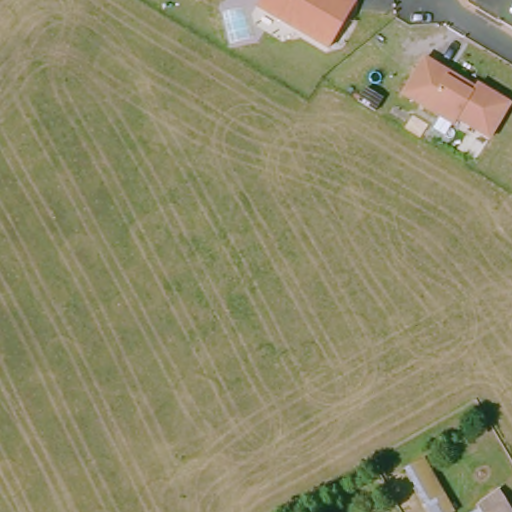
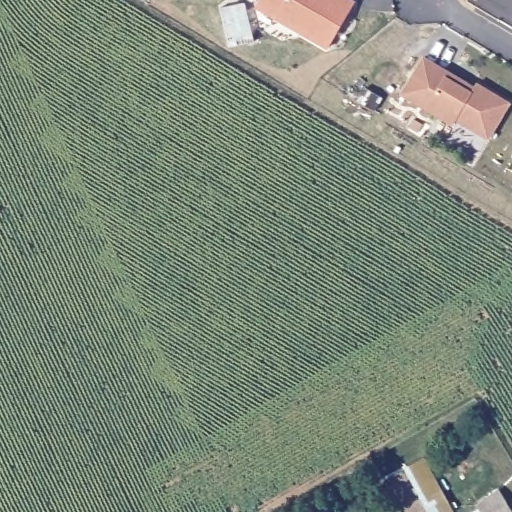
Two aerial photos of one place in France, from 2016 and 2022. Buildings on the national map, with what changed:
unchanged [(356,6),(354,9),(330,51),(257,9),(263,0),(346,0),(356,6)]
unchanged [(490,140),(457,121),(455,127),(403,97),(425,61),(450,75),(446,80),(472,95),(477,86),(510,106),(490,140)]
unchanged [(419,458),(449,512),(423,512),(400,471),(419,458)]
unchanged [(496,484),(512,511),(512,512),(482,512),(473,498),(496,484)]

